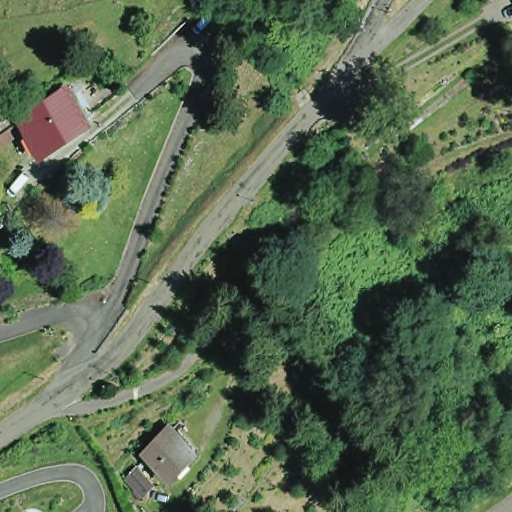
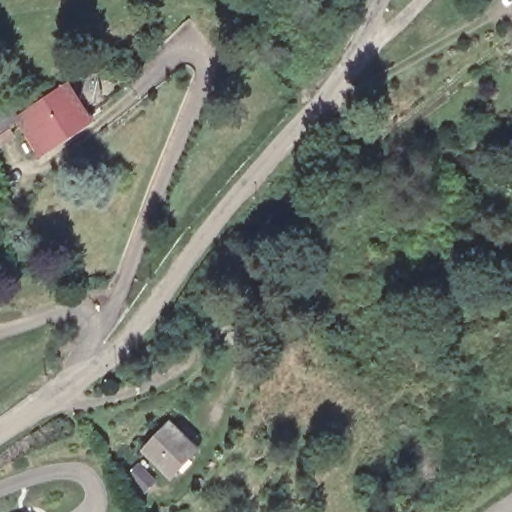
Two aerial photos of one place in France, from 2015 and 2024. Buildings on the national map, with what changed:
unchanged [(27,111),(69,81),(91,111),(49,141),(27,111)]
unchanged [(197,467),(178,487),(155,464),(173,445),(197,467)]

